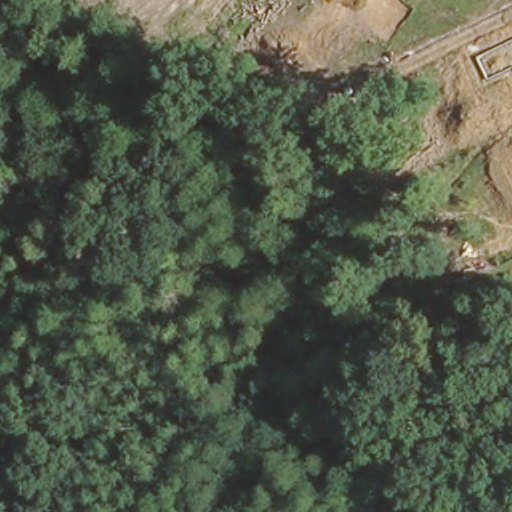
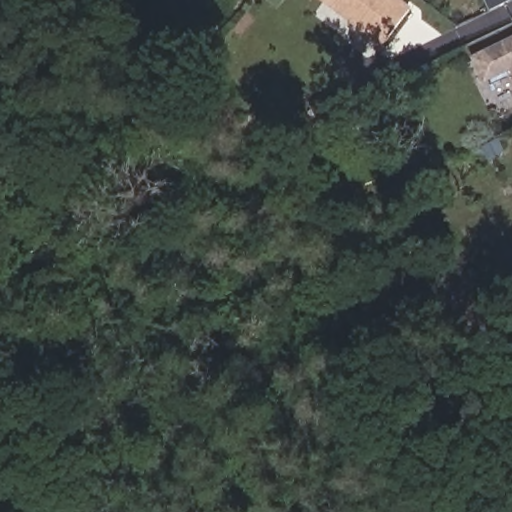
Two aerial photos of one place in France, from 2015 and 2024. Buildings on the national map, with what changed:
new [(384,46),(322,0),(405,0),(413,5),(384,46)]
unchanged [(487,80),(476,57),(512,39),(512,68),(487,80)]

